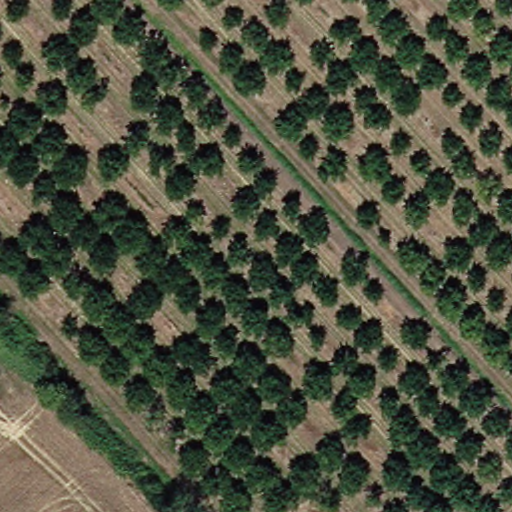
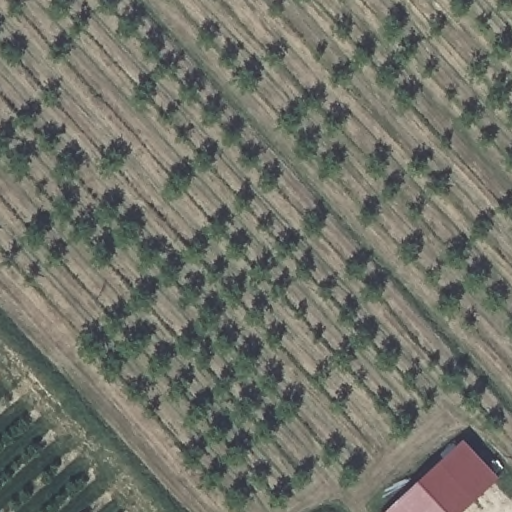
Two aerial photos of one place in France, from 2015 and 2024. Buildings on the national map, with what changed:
new [(464,440),(501,480),(465,512),(387,512),(464,440)]

